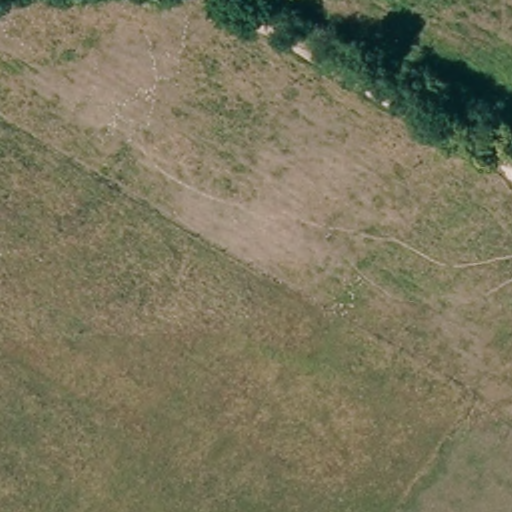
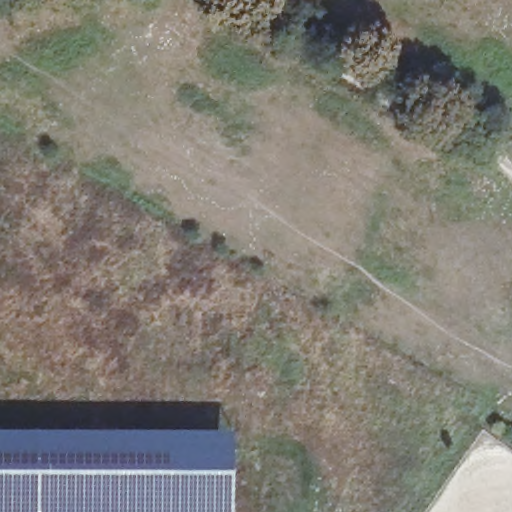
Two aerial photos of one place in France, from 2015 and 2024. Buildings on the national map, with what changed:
new [(0,429),(233,429),(233,512),(0,512),(0,429)]

